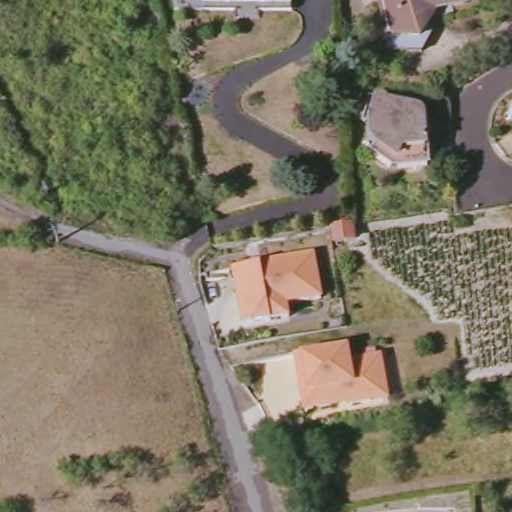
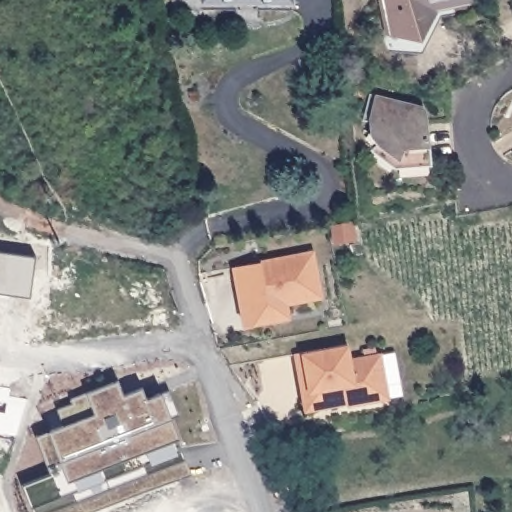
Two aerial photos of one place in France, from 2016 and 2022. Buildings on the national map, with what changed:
unchanged [(290,6),(202,6),(203,0),(290,0),(290,6)]
unchanged [(455,9),(441,11),(421,44),(388,42),(382,29),(387,20),(384,0),(453,0),(455,9)]
unchanged [(406,104),(406,108),(409,107),(412,107),(415,107),(417,107),(419,109),(421,110),(422,111),(423,114),(424,116),(424,119),(423,121),(422,122),(421,127),(425,127),(428,165),(397,167),(372,151),(380,147),(373,135),(374,122),(364,121),(369,96),(406,104)]
unchanged [(331,224),(350,220),(354,237),(335,242),(331,224)]
new [(0,296),(0,252),(36,257),(32,297),(0,296)]
unchanged [(276,323),(249,328),(237,271),(252,267),(257,270),(264,269),(263,266),(316,255),(325,298),(290,306),(293,320),(276,323)]
unchanged [(379,399),(354,403),(354,401),(320,407),(312,409),(306,373),(302,352),(354,342),(357,359),(387,353),(392,384),(395,396),(379,399)]
new [(36,512),(26,487),(51,476),(39,439),(66,428),(58,409),(72,407),(71,398),(122,382),(125,400),(145,388),(147,401),(169,391),(180,415),(172,420),(194,476),(97,512),(36,512)]
new [(9,397),(26,400),(17,438),(0,436),(0,386),(11,388),(9,397)]

